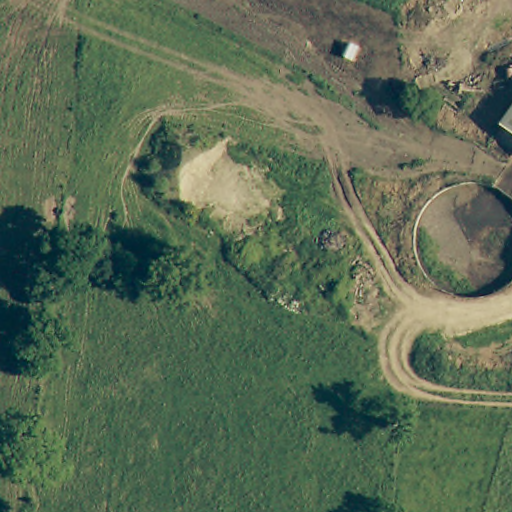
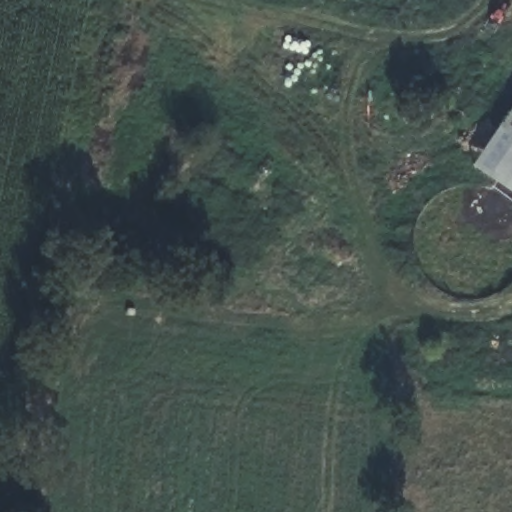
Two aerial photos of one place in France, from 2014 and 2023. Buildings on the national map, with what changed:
new [(512,110),(512,196),(472,167),(512,110)]

